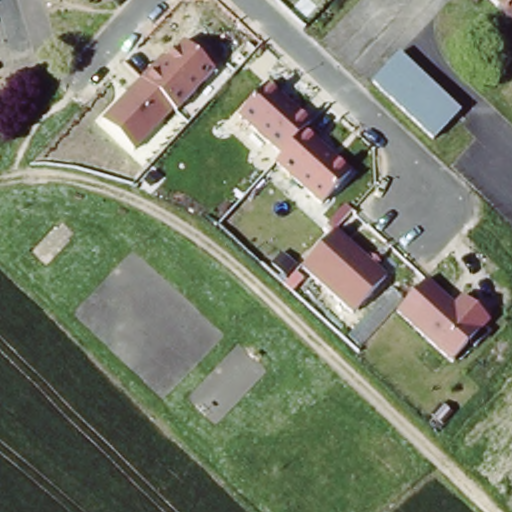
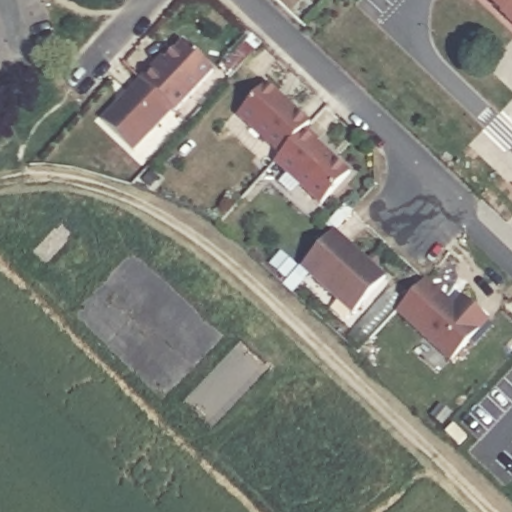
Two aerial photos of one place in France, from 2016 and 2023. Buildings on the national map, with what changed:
unchanged [(512,0),(512,14),(497,0),(512,0)]
unchanged [(212,71),(135,150),(102,119),(178,42),(212,71)]
demolished [(438,136),(377,80),(405,51),(466,108),(438,136)]
unchanged [(311,123),(305,133),(352,172),(322,205),(273,163),(280,154),(237,119),(270,84),(311,123)]
unchanged [(387,274),(352,314),(298,269),(335,229),(387,274)]
unchanged [(450,306),(460,296),(487,319),(449,362),(393,316),(423,281),(450,306)]

